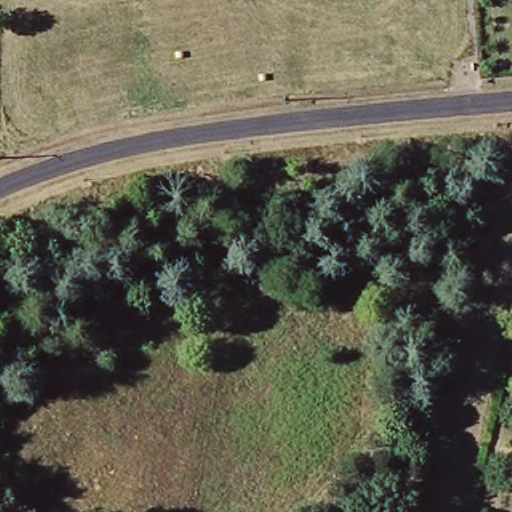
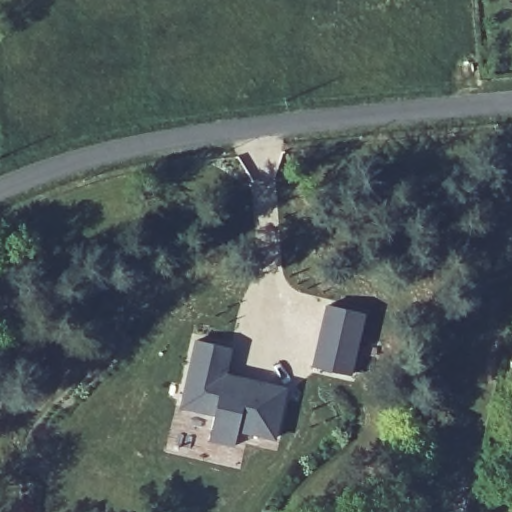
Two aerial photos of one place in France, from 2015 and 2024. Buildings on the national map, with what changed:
new [(353,374),(312,366),(328,304),(366,313),(353,374)]
new [(227,347),(222,374),(239,378),(283,387),(272,437),(235,428),(232,445),(206,439),(212,413),(179,406),(193,339),(227,347)]

